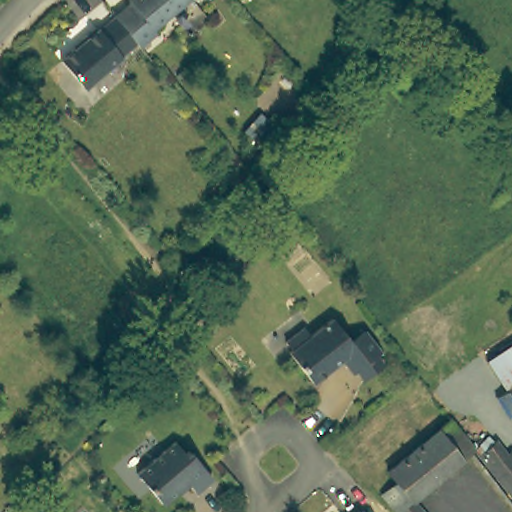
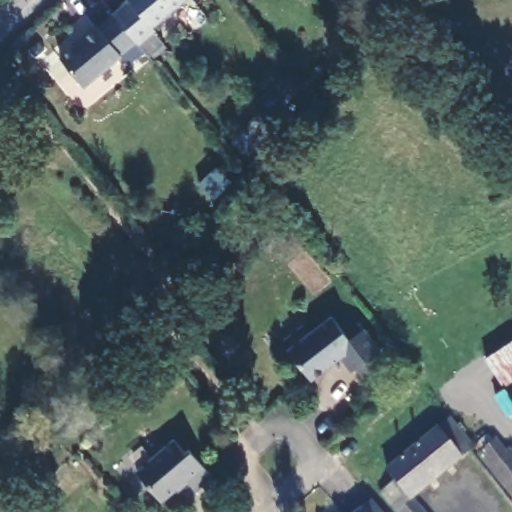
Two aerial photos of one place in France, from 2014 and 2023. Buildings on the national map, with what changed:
unchanged [(111,14),(110,13),(125,0),(124,0),(185,0),(151,28),(154,31),(137,45),(132,40),(111,14)]
unchanged [(132,40),(115,54),(117,55),(79,86),(55,59),(80,38),(77,35),(91,24),(95,28),(111,14),(132,40)]
unchanged [(358,385),(350,375),(346,377),(334,363),(314,378),(290,350),(291,348),(285,341),(303,326),(310,335),(331,316),(353,342),(361,335),(377,352),(373,356),(381,367),(358,385)]
unchanged [(512,351),(512,395),(491,365),(512,351)]
unchanged [(502,401),(512,395),(512,417),(502,401)]
unchanged [(380,499),(392,490),(380,471),(445,422),(463,449),(466,452),(405,498),(416,512),(390,512),(389,511),(380,499)]
unchanged [(171,512),(168,512),(135,471),(171,441),(182,454),(188,450),(220,488),(202,502),(195,492),(171,512)]
unchanged [(512,459),(512,498),(507,501),(475,453),(491,442),(491,443),(493,443),(495,442),(503,455),(507,452),(512,459)]
unchanged [(359,512),(354,512),(357,509),(359,512)]

